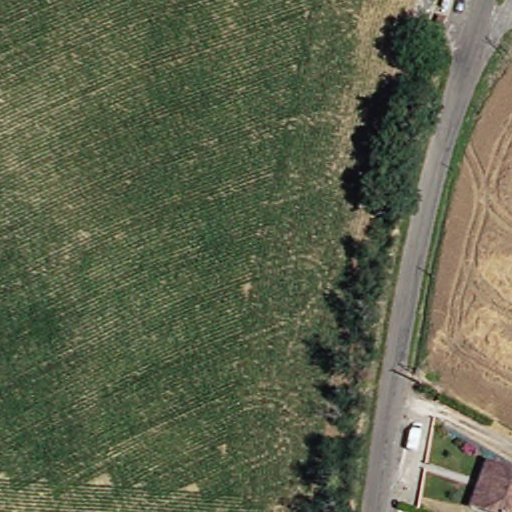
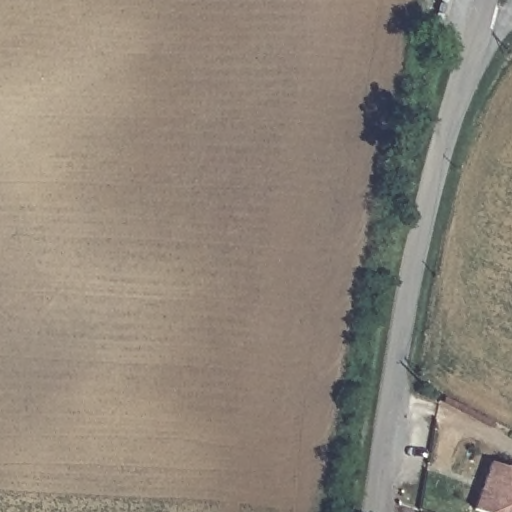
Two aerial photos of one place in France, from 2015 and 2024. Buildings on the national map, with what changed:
unchanged [(501,460),(512,465),(512,512),(499,512),(485,506),(501,460)]

